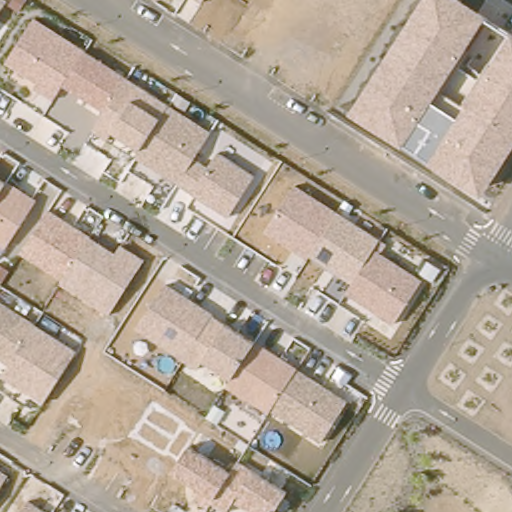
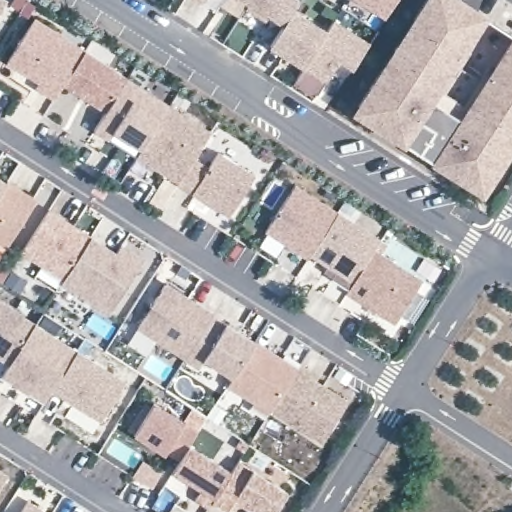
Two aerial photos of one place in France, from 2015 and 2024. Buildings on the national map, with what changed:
unchanged [(0,13),(0,0),(6,0),(8,1),(0,13)]
unchanged [(202,3),(197,0),(203,0),(202,3)]
new [(294,9),(328,30),(335,17),(370,42),(352,70),(339,61),(326,81),(316,97),(294,82),(304,67),(270,46),(285,24),(270,17),(267,22),(246,10),(250,3),(244,0),(300,0),(294,9)]
new [(383,23),(347,1),(347,0),(397,0),(383,23)]
unchanged [(484,196),(350,113),(424,0),(463,0),(488,16),(433,103),(457,118),(512,33),(512,151),(484,196)]
unchanged [(212,131),(195,157),(210,167),(219,152),(256,177),(229,216),(134,157),(139,149),(114,133),(110,139),(94,128),(105,111),(63,86),(54,100),(35,87),(38,82),(7,63),(34,17),(212,131)]
unchanged [(0,245),(0,176),(9,182),(38,200),(6,248),(0,245)]
unchanged [(397,324),(348,294),(354,286),(266,232),(297,186),(387,245),(381,254),(423,280),(397,324)]
unchanged [(110,316),(60,283),(63,279),(21,254),(50,211),(116,252),(122,243),(145,257),(110,316)]
unchanged [(323,441),(272,408),(270,411),(227,385),(231,377),(205,360),(198,368),(138,328),(167,285),(227,322),(258,342),(348,400),(323,441)]
unchanged [(3,377),(11,366),(0,358),(0,301),(77,351),(43,402),(3,377)]
new [(126,382),(101,422),(52,390),(77,351),(126,382)]
new [(166,450),(163,454),(134,434),(155,401),(186,422),(184,427),(197,433),(190,445),(182,458),(166,450)]
unchanged [(253,512),(236,501),(229,511),(213,502),(210,507),(195,497),(199,490),(173,475),(190,445),(232,472),(239,461),(256,471),(287,491),(274,512),(253,512)]
unchanged [(0,491),(0,470),(10,476),(0,491)]
unchanged [(46,512),(21,512),(28,501),(46,512)]

